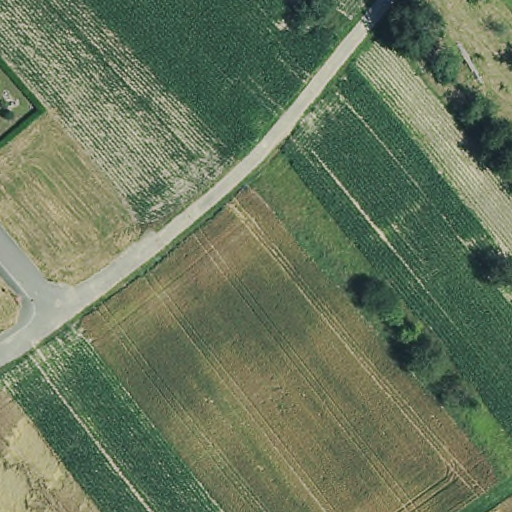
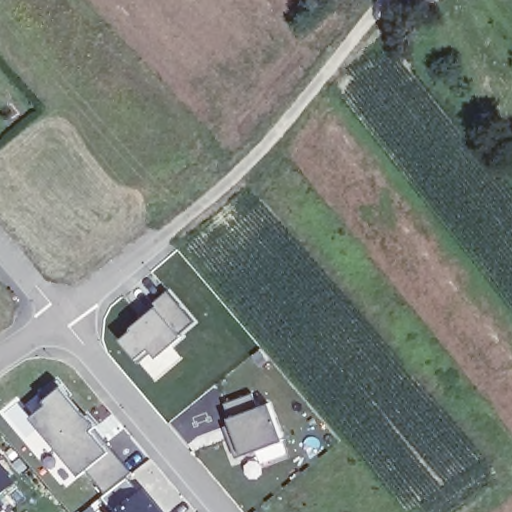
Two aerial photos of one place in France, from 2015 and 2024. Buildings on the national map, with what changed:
new [(194,323),(147,360),(139,348),(124,362),(105,335),(162,290),(194,323)]
new [(12,403),(20,407),(55,382),(106,453),(76,482),(35,434),(26,441),(3,412),(12,403)]
new [(270,402),(284,445),(235,461),(220,418),(270,402)]
new [(11,482),(0,492),(0,471),(11,482)]
new [(137,488),(158,512),(108,512),(137,488)]

